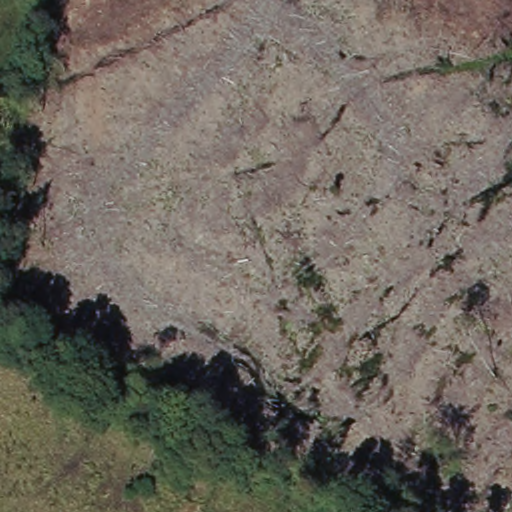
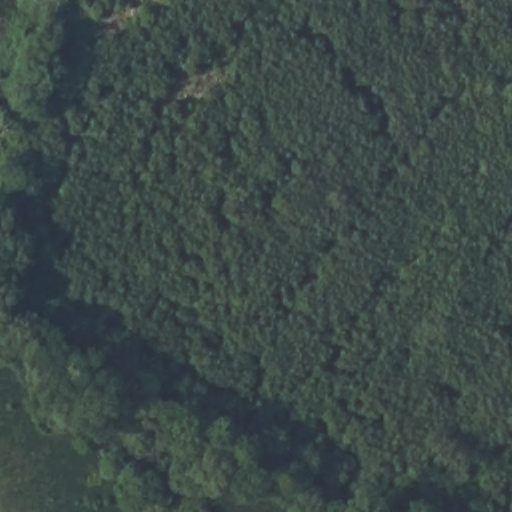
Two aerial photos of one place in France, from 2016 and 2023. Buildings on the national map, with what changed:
[]

